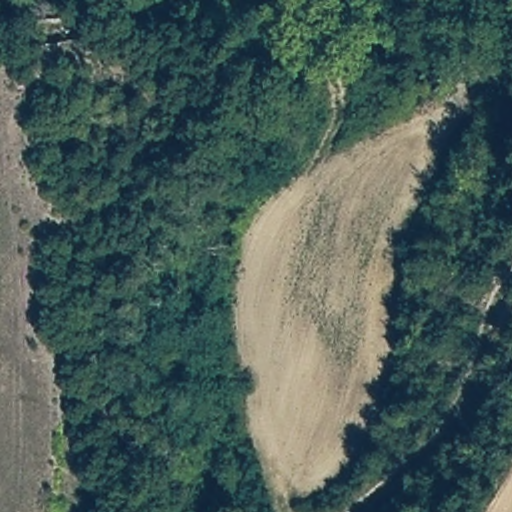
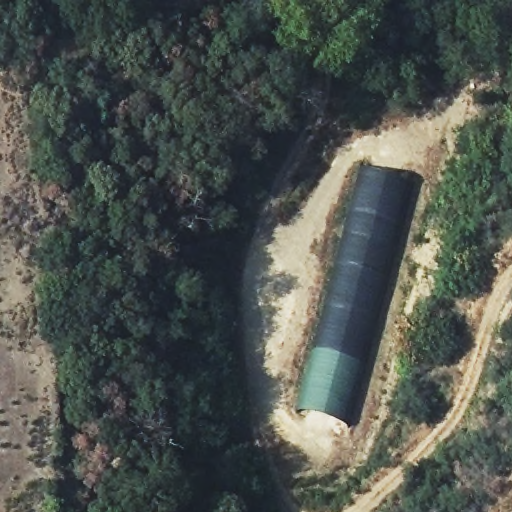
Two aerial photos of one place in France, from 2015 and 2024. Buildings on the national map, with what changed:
new [(412,182),(348,424),(295,410),(360,169),(412,182)]

